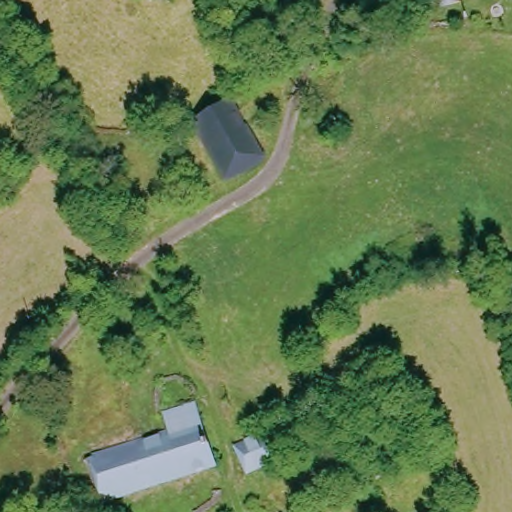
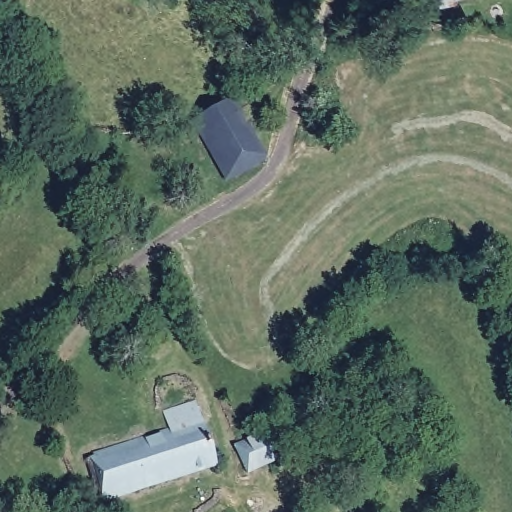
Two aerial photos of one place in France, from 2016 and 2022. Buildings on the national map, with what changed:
unchanged [(436,10),(432,0),(450,0),(452,5),(436,10)]
unchanged [(222,181),(188,122),(227,100),(243,129),(260,160),(222,181)]
unchanged [(163,431),(158,415),(191,404),(199,430),(211,463),(97,500),(82,460),(163,431)]
unchanged [(277,465),(251,476),(238,449),(264,437),(277,465)]

